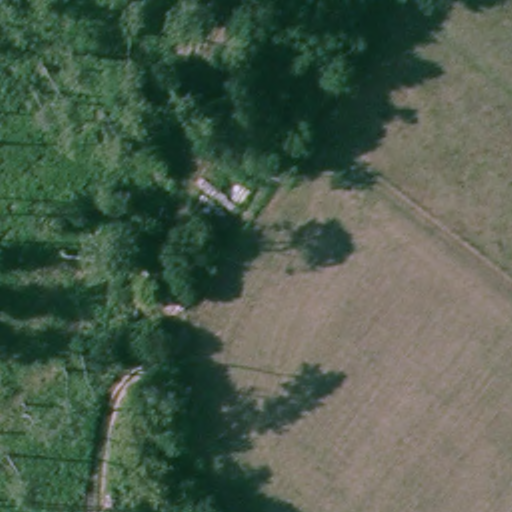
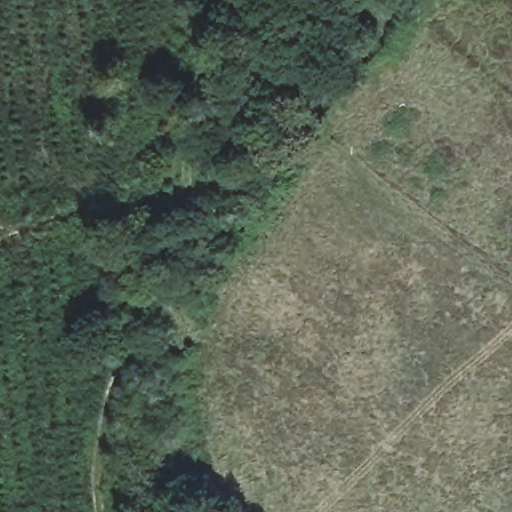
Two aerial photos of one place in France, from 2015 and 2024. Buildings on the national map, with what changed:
[]

